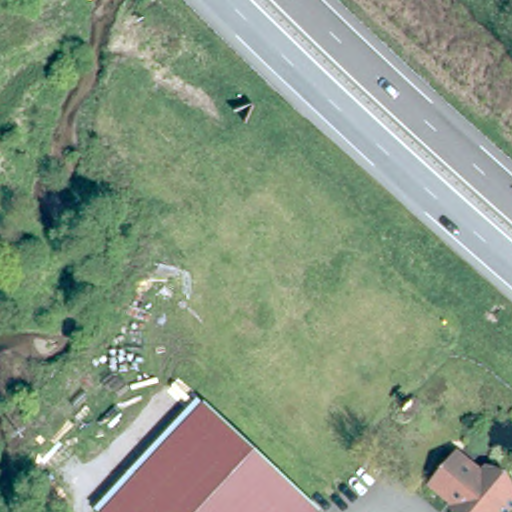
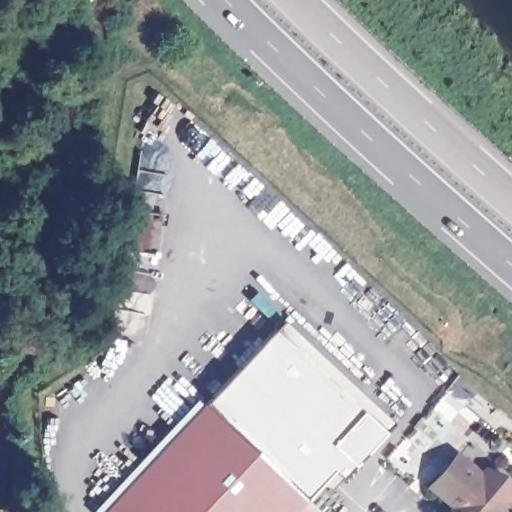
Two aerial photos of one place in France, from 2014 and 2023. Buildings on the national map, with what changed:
new [(305,494),(205,408),(286,320),(395,421),(387,429),(356,464),(345,476),(333,488),(325,479),(309,498),(305,494)]
unchanged [(305,494),(320,507),(315,512),(106,512),(198,403),(305,494)]
unchanged [(455,503),(430,481),(457,450),(463,456),(470,452),(483,463),(477,469),(485,475),(493,466),(501,472),(511,483),(505,492),(512,498),(512,505),(506,512),(458,512),(452,506),(455,503)]

